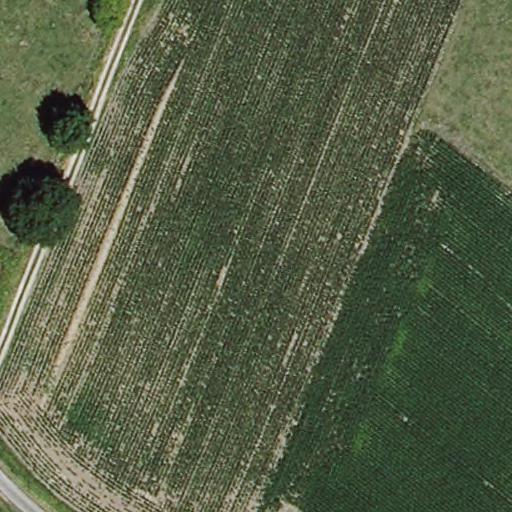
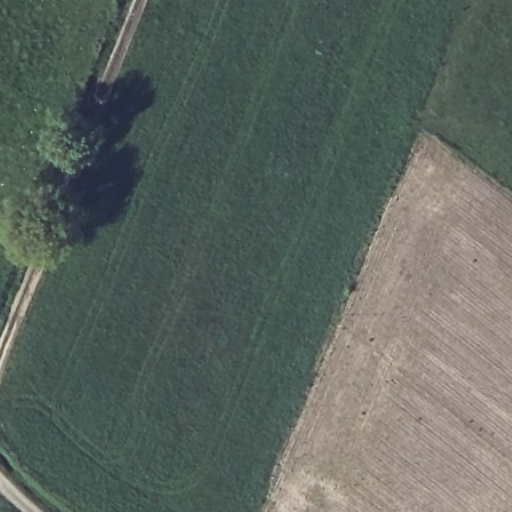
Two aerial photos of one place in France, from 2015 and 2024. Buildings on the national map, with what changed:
unchanged [(129,78),(113,71),(121,47),(138,52),(129,78)]

